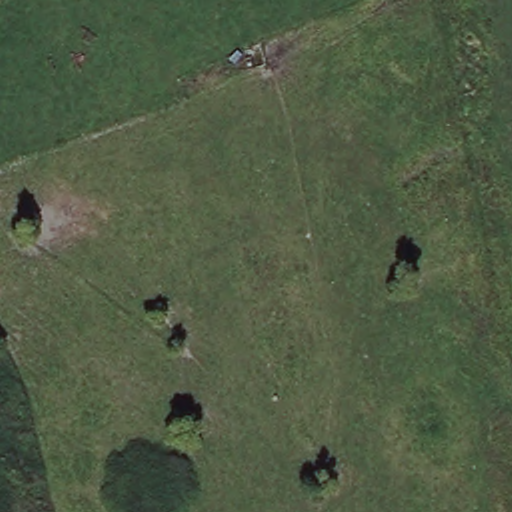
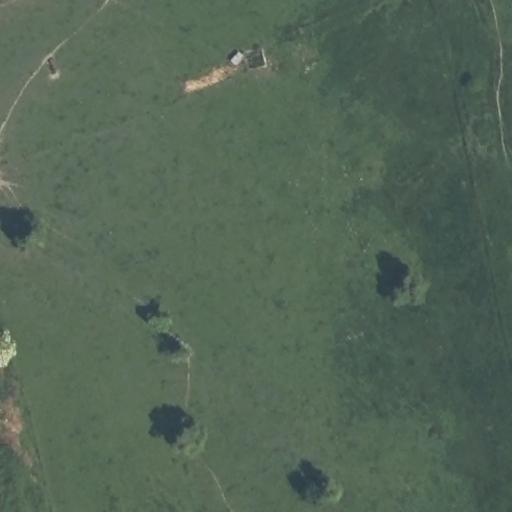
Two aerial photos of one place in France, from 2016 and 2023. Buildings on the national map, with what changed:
[]

